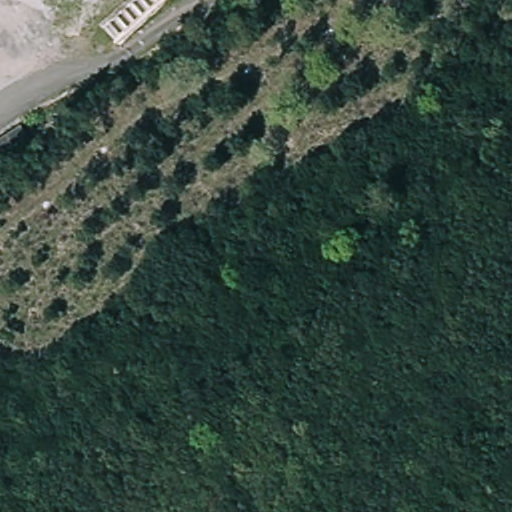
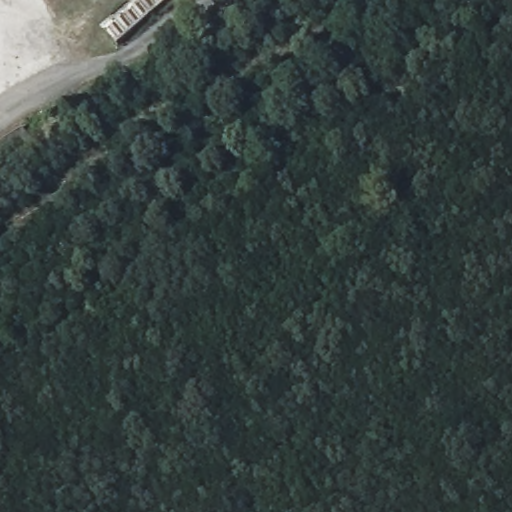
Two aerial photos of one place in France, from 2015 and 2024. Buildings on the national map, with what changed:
unchanged [(106,39),(142,0),(171,0),(116,53),(109,51),(106,39)]
unchanged [(39,157),(0,182),(0,148),(23,133),(39,157)]

